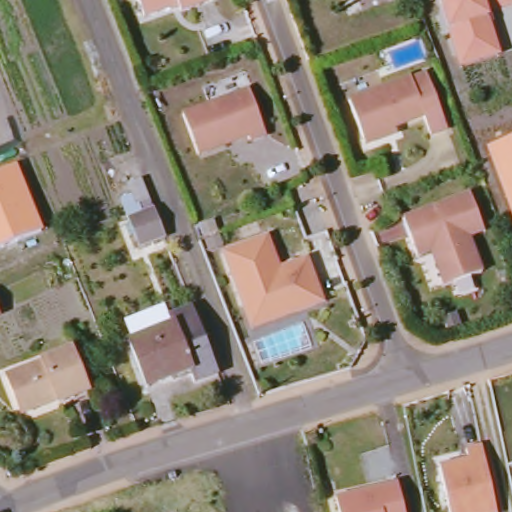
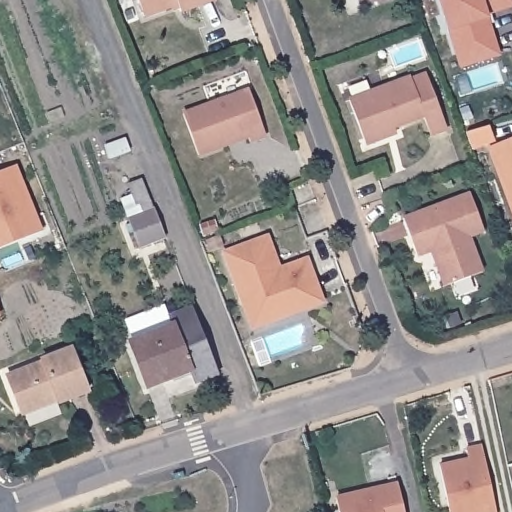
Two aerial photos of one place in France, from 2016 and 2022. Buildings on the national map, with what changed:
unchanged [(179,4),(145,16),(139,0),(213,0),(182,11),(179,4)]
unchanged [(487,13),(499,53),(459,66),(437,0),(512,0),(512,4),(487,13)]
unchanged [(367,149),(365,143),(351,103),(411,79),(412,83),(427,76),(440,109),(448,131),(433,138),(427,119),(397,130),(399,137),(367,149)]
unchanged [(252,89),(268,135),(252,141),(250,137),(200,155),(185,114),(252,89)]
unchanged [(512,142),(512,216),(487,151),(512,142)]
unchanged [(42,231),(0,250),(0,173),(17,166),(42,231)]
unchanged [(471,194),(485,232),(470,238),(485,274),(445,290),(435,265),(440,263),(437,252),(418,259),(405,221),(471,194)]
unchanged [(153,205),(163,234),(137,244),(127,215),(153,205)]
unchanged [(207,215),(212,229),(197,234),(192,220),(207,215)]
unchanged [(213,234),(218,248),(205,253),(200,239),(213,234)]
unchanged [(245,307),(226,254),(270,237),(282,269),(310,259),(322,295),(317,305),(300,312),(252,329),(245,307)]
unchanged [(217,377),(196,386),(190,374),(145,393),(129,350),(173,330),(170,319),(192,310),(217,377)]
unchanged [(6,380),(42,364),(40,360),(50,356),(70,349),(87,393),(67,399),(57,404),(54,397),(19,412),(6,380)]
unchanged [(441,467),(470,461),(467,451),(485,447),(498,512),(451,512),(441,467)]
unchanged [(337,497),(400,482),(406,512),(340,512),(337,497)]

